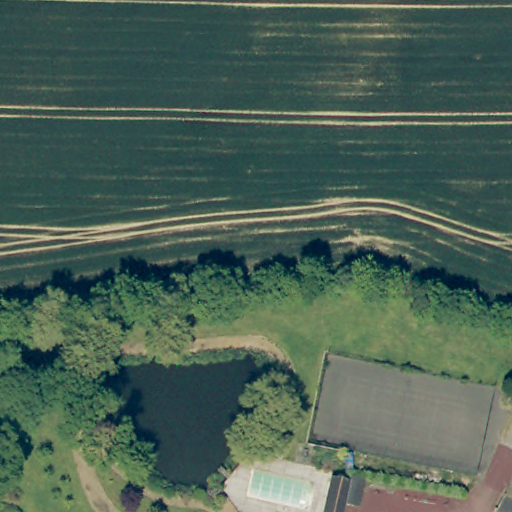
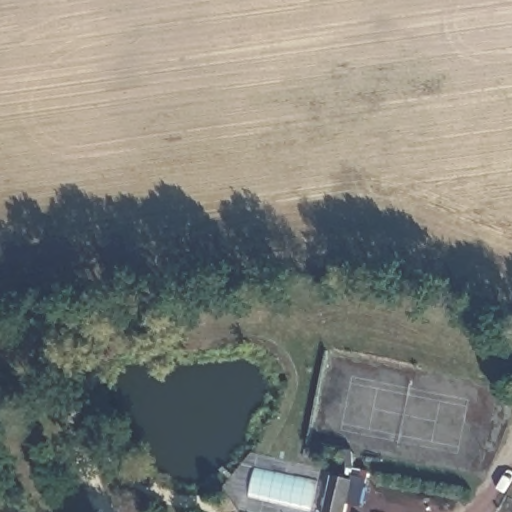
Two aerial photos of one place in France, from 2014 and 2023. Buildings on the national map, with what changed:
unchanged [(353,481),(345,512),(323,512),(332,477),(353,481)]

